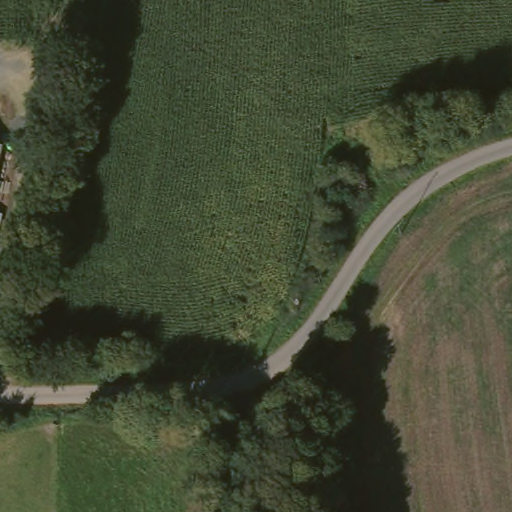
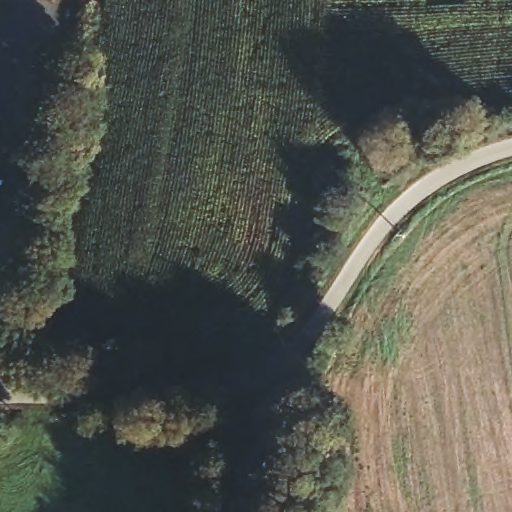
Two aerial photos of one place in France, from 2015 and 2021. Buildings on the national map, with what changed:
unchanged [(0,160),(0,147),(2,147),(0,160)]

